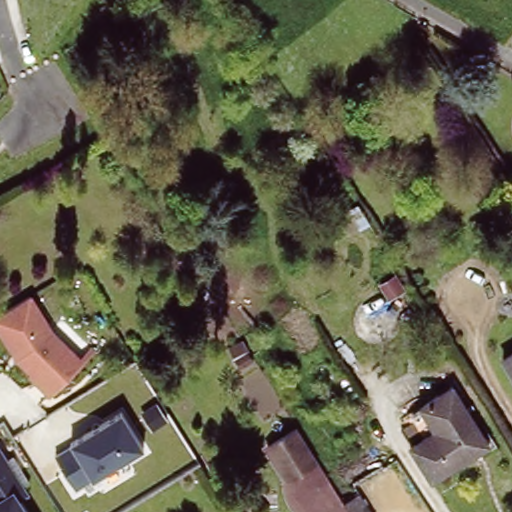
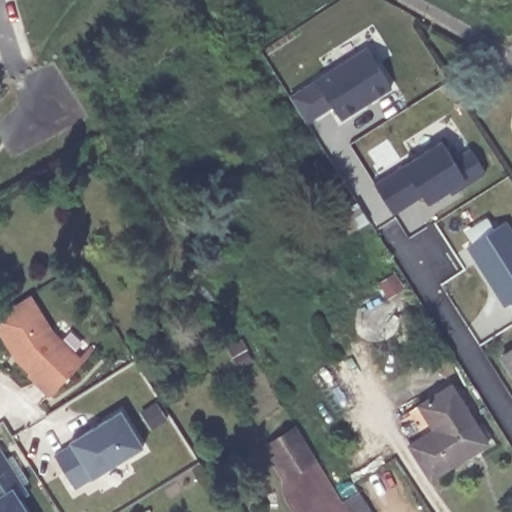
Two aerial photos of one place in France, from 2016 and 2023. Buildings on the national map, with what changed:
new [(342,120),(333,108),(307,123),(291,96),(367,46),(395,89),(342,120)]
new [(454,196),(451,191),(430,204),(425,197),(395,214),(376,182),(405,164),(443,141),(455,159),(471,148),(489,174),(454,196)]
new [(468,246),(509,221),(512,226),(512,302),(505,307),(468,246)]
unchanged [(15,359),(0,336),(0,312),(30,294),(53,329),(84,359),(52,394),(15,359)]
unchanged [(512,352),(512,370),(504,358),(512,352)]
unchanged [(2,374),(0,375),(0,370),(2,374)]
unchanged [(491,442),(433,476),(414,443),(440,427),(425,403),(455,385),(491,442)]
unchanged [(72,443),(122,411),(144,447),(93,477),(74,487),(55,453),(72,443)]
unchanged [(312,461),(285,479),(265,447),(293,429),(312,461)]
unchanged [(1,445),(28,491),(20,494),(30,512),(0,512),(0,446),(1,445)]
unchanged [(350,512),(343,501),(358,492),(365,502),(372,512),(351,512),(350,512)]

